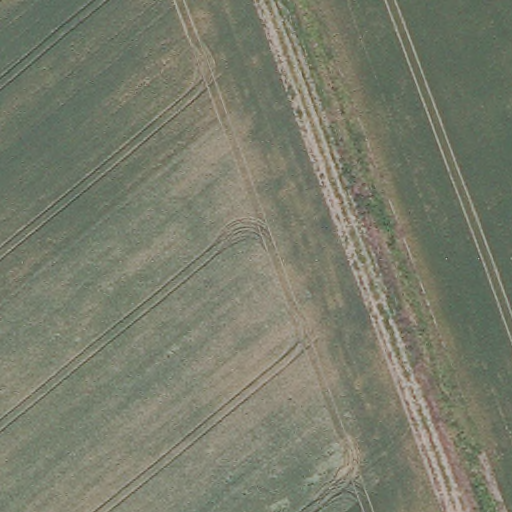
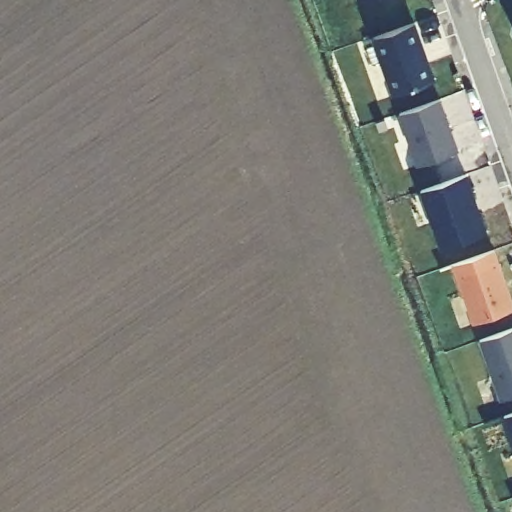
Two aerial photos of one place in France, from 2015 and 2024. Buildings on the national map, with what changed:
new [(396,94),(375,36),(415,22),(436,80),(396,94)]
new [(441,97),(460,149),(420,164),(401,112),(441,97)]
new [(487,230),(445,246),(424,186),(468,172),(487,230)]
new [(512,294),(512,308),(475,320),(461,280),(501,264),(512,294)]
new [(502,399),(482,338),(512,329),(512,395),(502,399)]
new [(507,413),(512,412),(512,428),(507,413)]

